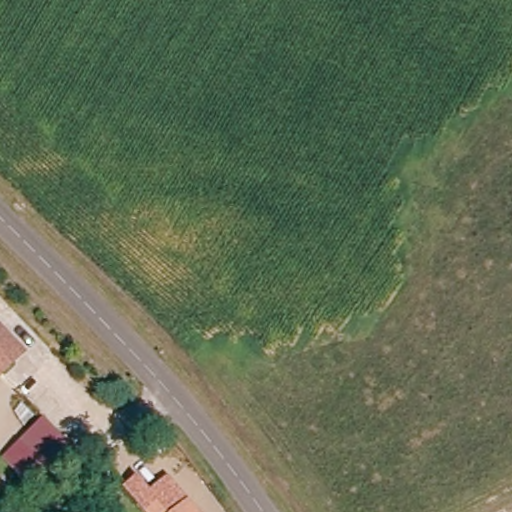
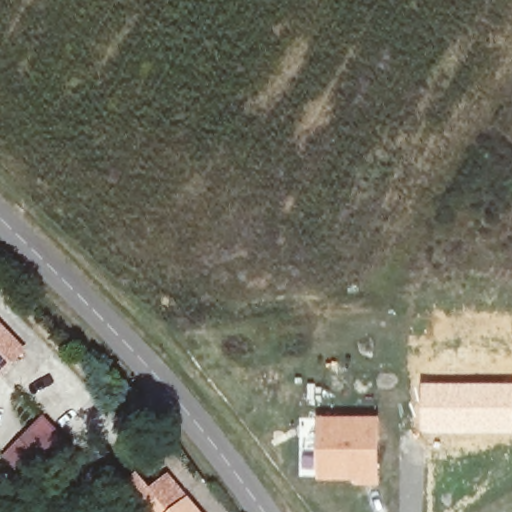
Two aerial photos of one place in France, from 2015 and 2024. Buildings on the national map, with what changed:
unchanged [(36,353),(14,377),(0,365),(0,318),(11,329),(36,353)]
new [(422,381),(512,382),(512,430),(422,430),(422,381)]
new [(320,414),(380,415),(380,484),(316,479),(320,414)]
new [(36,482),(7,453),(29,431),(35,425),(42,416),(72,444),(62,454),(58,459),(50,467),(36,482)]
demolished [(40,431),(40,430),(46,424),(54,416),(84,444),(74,454),(70,459),(40,431)]
new [(149,512),(125,483),(136,473),(149,488),(169,473),(189,500),(174,512),(149,512)]
unchanged [(174,512),(189,500),(198,512),(174,512)]

